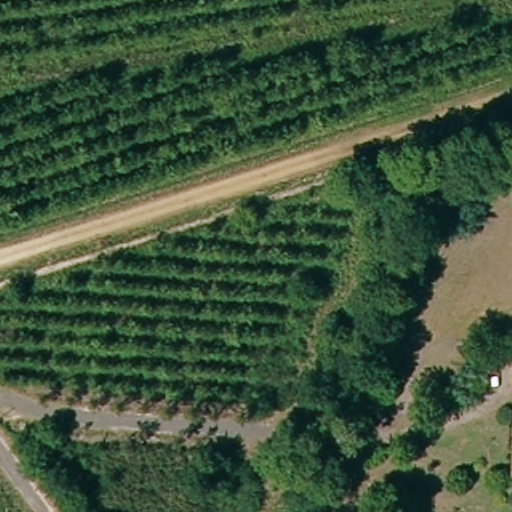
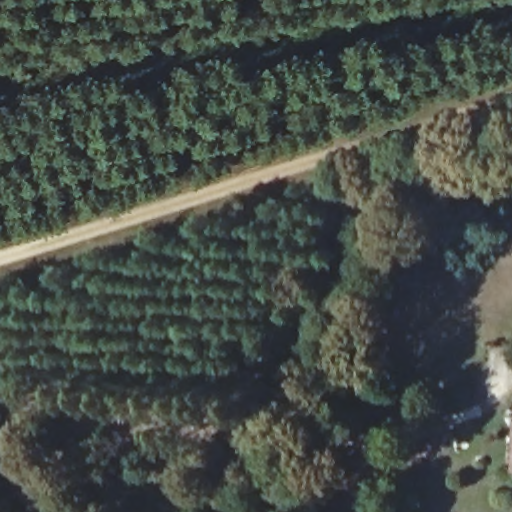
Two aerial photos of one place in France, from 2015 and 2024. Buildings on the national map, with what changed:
unchanged [(507,475),(512,423),(512,475),(507,475)]

